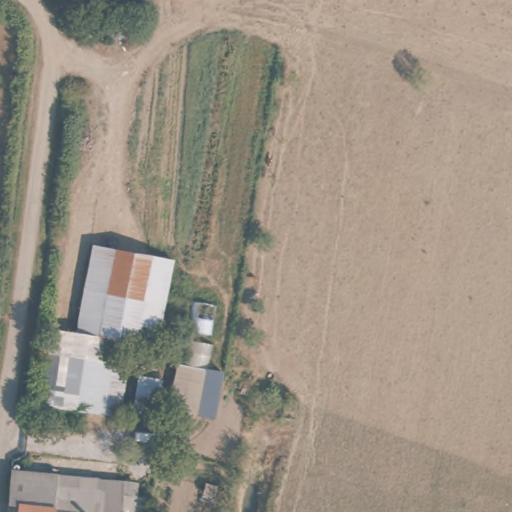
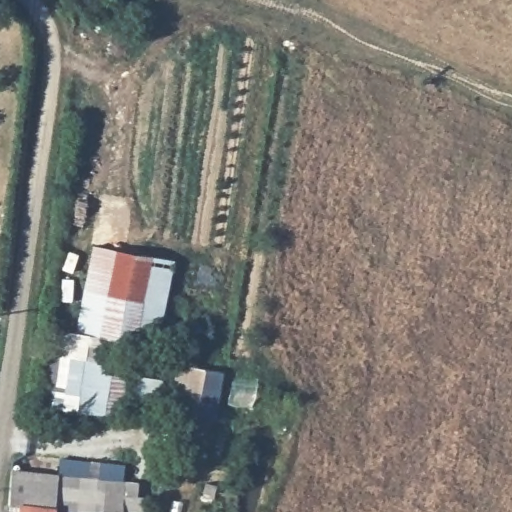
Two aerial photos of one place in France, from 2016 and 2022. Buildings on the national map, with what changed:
unchanged [(177,263),(162,351),(114,342),(111,362),(123,364),(117,418),(39,408),(46,353),(75,358),(95,247),(177,263)]
unchanged [(163,423),(130,419),(136,378),(167,380),(163,423)]
unchanged [(11,503),(14,480),(89,486),(126,491),(125,512),(56,512),(56,510),(11,503)]
unchanged [(56,512),(10,512),(11,503),(56,510),(56,512)]

